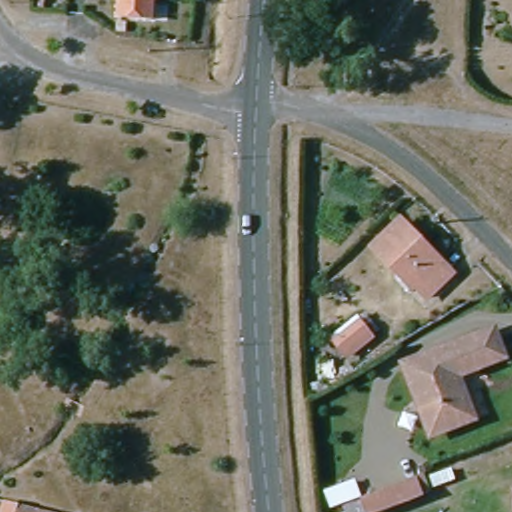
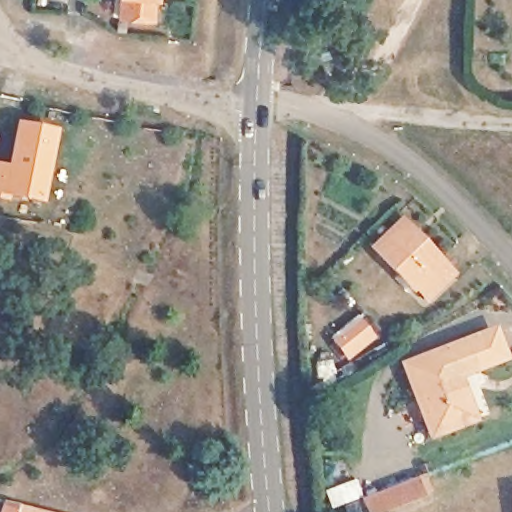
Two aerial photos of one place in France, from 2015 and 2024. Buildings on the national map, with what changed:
unchanged [(149,20),(115,17),(116,0),(150,0),(149,20)]
new [(5,162),(15,120),(55,128),(40,201),(0,196),(0,162),(5,162)]
unchanged [(455,275),(429,300),(417,287),(413,290),(374,249),(403,220),(455,275)]
unchanged [(350,357),(337,342),(360,322),(373,338),(350,357)]
unchanged [(464,420),(424,435),(397,366),(485,332),(494,357),(448,375),(464,420)]
unchanged [(379,496),(432,476),(437,490),(385,511),(382,512),(365,512),(361,503),(379,496)]
unchanged [(10,505),(36,512),(0,512),(0,503),(10,505)]

